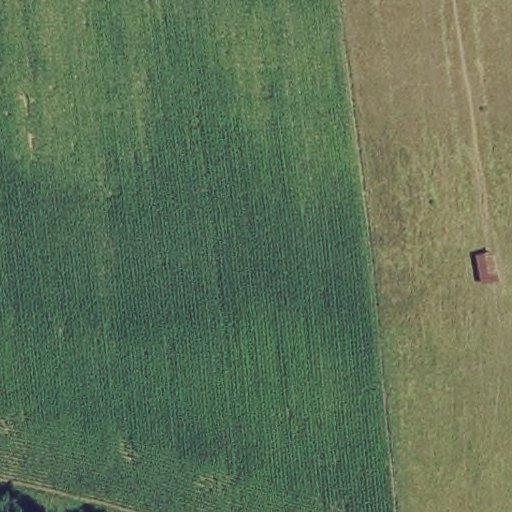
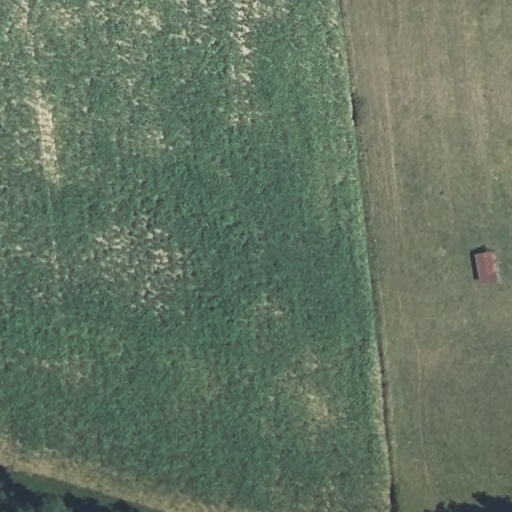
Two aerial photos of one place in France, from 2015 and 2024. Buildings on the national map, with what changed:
unchanged [(496,254),(500,282),(480,283),(475,255),(496,254)]

